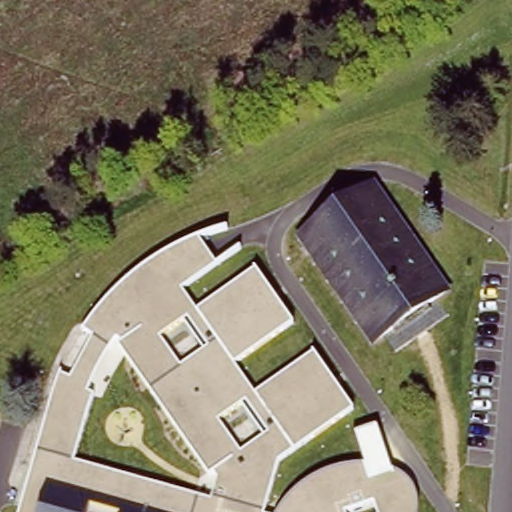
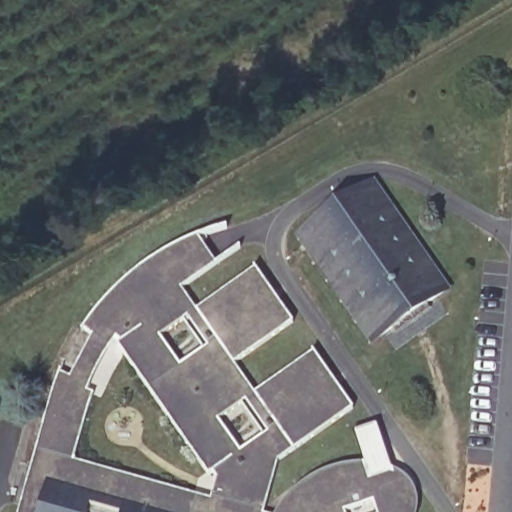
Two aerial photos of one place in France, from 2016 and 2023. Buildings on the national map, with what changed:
unchanged [(375,184),(449,287),(373,341),(300,238),(375,184)]
unchanged [(93,336),(85,333),(109,301),(137,274),(170,252),(200,239),(216,266),(183,290),(196,310),(256,270),(294,325),(235,365),(255,394),(317,354),(353,409),(280,460),(265,512),(22,512),(55,389),(60,375),(72,379),(93,336)]
unchanged [(286,502),(307,482),(332,471),(355,466),(365,464),(355,434),(378,427),(394,472),(410,483),(419,501),(418,512),(281,512),(286,502)]

